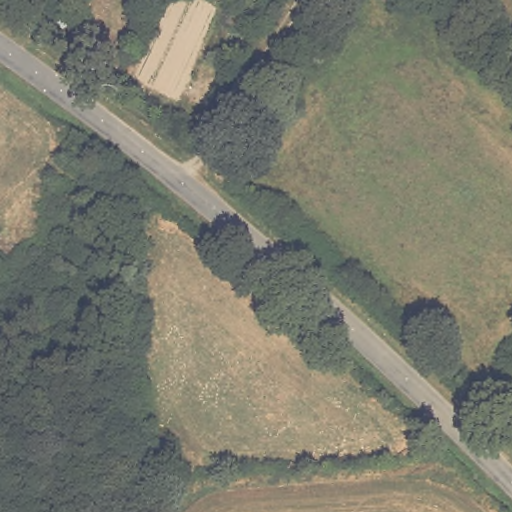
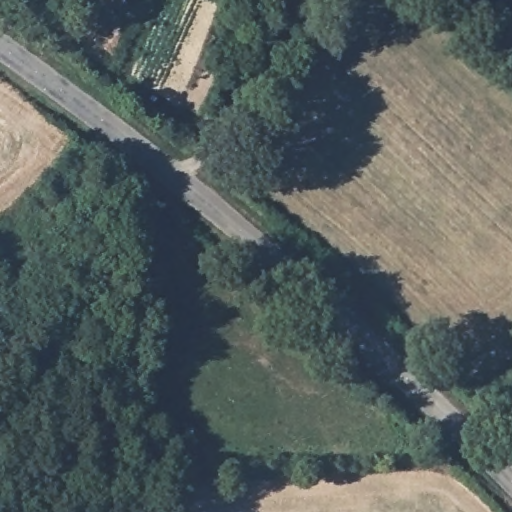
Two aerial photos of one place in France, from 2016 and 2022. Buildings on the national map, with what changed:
unchanged [(213,168),(227,181),(216,193),(203,180),(213,168)]

